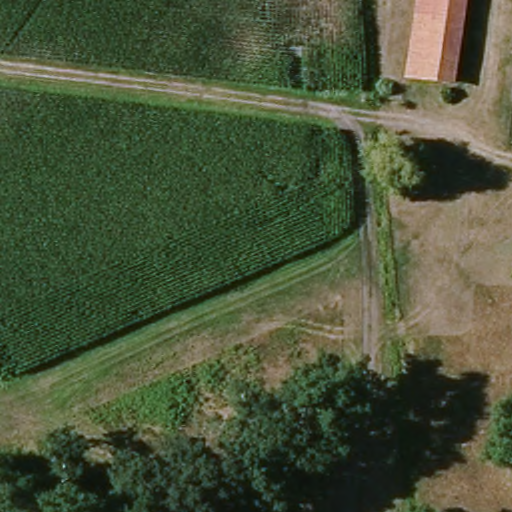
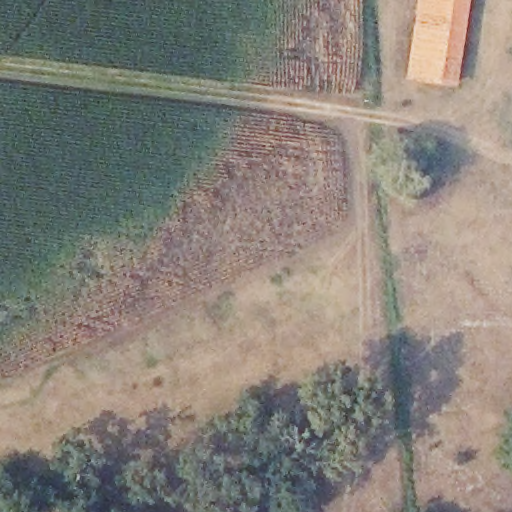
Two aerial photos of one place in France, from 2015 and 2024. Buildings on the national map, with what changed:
unchanged [(426,0),(469,0),(463,73),(421,70),(426,0)]

